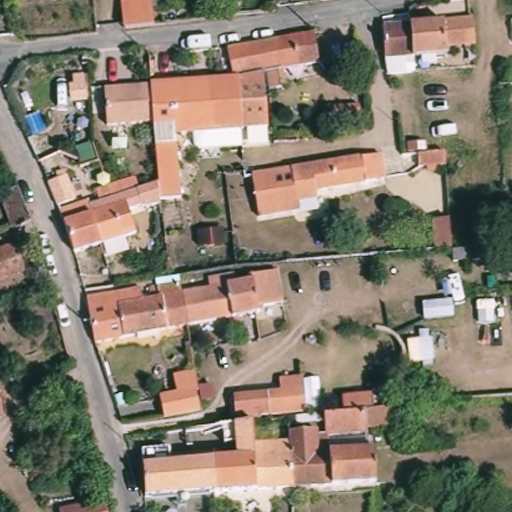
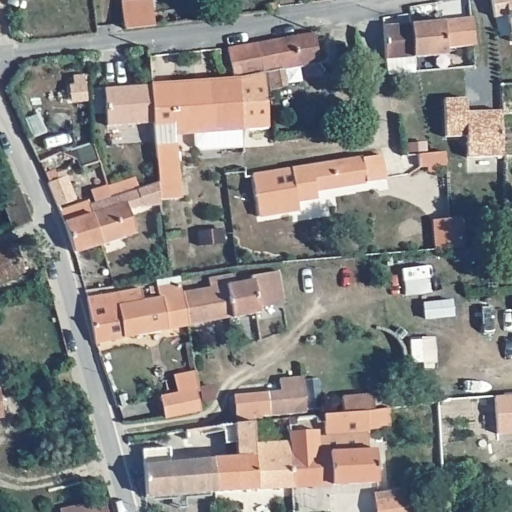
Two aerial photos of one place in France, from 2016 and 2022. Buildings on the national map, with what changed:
unchanged [(118,0),(148,0),(150,7),(160,5),(162,19),(121,24),(118,0)]
new [(511,42),(507,15),(494,17),(491,0),(512,0),(512,42),(511,42)]
unchanged [(276,9),(266,10),(265,3),(275,2),(276,9)]
unchanged [(448,50),(448,56),(416,59),(414,59),(413,26),(474,20),(476,20),(478,46),(477,46),(448,50)]
unchanged [(413,26),(414,59),(416,59),(417,72),(408,72),(406,60),(387,62),(387,28),(413,26)]
unchanged [(266,74),(260,43),(318,32),(324,64),(268,74),(266,74)]
unchanged [(272,125),(244,130),(236,80),(235,70),(233,48),(260,43),(266,74),(272,125)]
unchanged [(236,80),(244,130),(224,134),(216,84),(236,80)]
unchanged [(160,131),(156,94),(216,84),(224,134),(179,142),(176,131),(161,133),(160,131)]
unchanged [(160,131),(115,137),(110,99),(156,94),(160,131)]
new [(464,97),(466,112),(499,111),(501,157),(467,158),(466,136),(445,137),(444,97),(464,97)]
unchanged [(169,204),(166,181),(159,182),(154,132),(161,133),(176,131),(179,142),(184,201),(169,204)]
unchanged [(415,171),(414,157),(417,157),(440,155),(441,170),(415,171)]
unchanged [(390,181),(386,181),(327,187),(317,189),(318,197),(298,199),(299,207),(259,212),(258,210),(256,190),(296,186),(294,166),(325,162),(383,156),(387,156),(390,181)]
unchanged [(51,182),(61,178),(58,172),(65,170),(78,197),(61,206),(51,182)]
unchanged [(144,208),(144,206),(130,211),(138,234),(104,245),(91,204),(146,187),(166,181),(169,204),(144,208)]
unchanged [(35,218),(34,220),(31,222),(27,223),(10,228),(0,204),(0,193),(23,187),(34,216),(35,218)]
unchanged [(104,245),(102,245),(76,253),(68,222),(73,220),(70,210),(91,202),(91,204),(104,245)]
unchanged [(450,251),(434,252),(431,222),(447,221),(450,251)]
unchanged [(28,280),(0,289),(0,257),(18,251),(28,280)]
unchanged [(208,290),(206,279),(233,275),(234,286),(256,282),(254,277),(276,273),(281,305),(263,308),(264,313),(236,320),(235,318),(189,327),(184,294),(208,290)]
unchanged [(91,300),(144,290),(146,302),(162,298),(161,286),(182,283),(184,294),(189,327),(98,343),(91,300)]
unchanged [(237,397),(283,392),(283,380),(305,377),(310,412),(255,419),(256,423),(245,425),(239,425),(237,397)]
unchanged [(194,387),(197,407),(159,413),(156,391),(194,385),(194,387)]
unchanged [(370,430),(370,433),(328,437),(327,424),(320,425),(319,417),(326,416),(336,415),(348,414),(346,398),(376,396),(376,392),(383,392),(384,400),(377,401),(378,411),(382,410),(391,409),(392,427),(370,430)]
new [(512,395),(512,431),(498,433),(494,397),(512,395)]
unchanged [(6,425),(0,426),(0,396),(1,396),(6,425)]
unchanged [(205,404),(199,405),(198,399),(204,398),(205,404)]
unchanged [(300,427),(290,428),(289,420),(299,419),(300,427)]
unchanged [(239,425),(245,425),(256,423),(258,447),(259,457),(262,491),(240,492),(218,494),(150,498),(146,451),(172,449),(172,458),(186,457),(186,463),(198,463),(198,457),(212,456),(213,462),(215,462),(215,461),(248,458),(247,443),(239,445),(238,425),(239,425)]
unchanged [(317,432),(317,438),(328,437),(330,453),(377,450),(380,483),(297,488),(292,443),(291,435),(317,432)]
unchanged [(262,491),(259,457),(258,447),(292,443),(297,488),(262,491)]
new [(403,490),(406,512),(372,512),(371,493),(403,490)]
unchanged [(106,512),(58,512),(58,511),(104,500),(106,512)]

